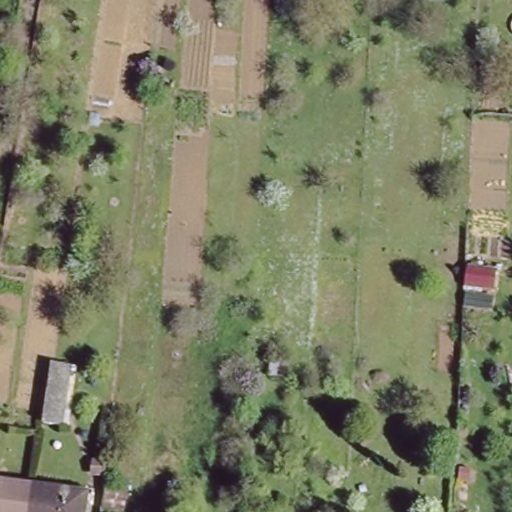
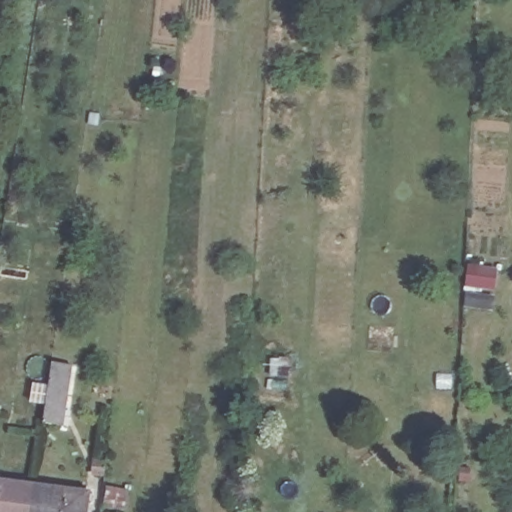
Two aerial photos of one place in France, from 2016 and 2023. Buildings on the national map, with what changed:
unchanged [(463,291),(467,264),(499,270),(497,295),(463,291)]
unchanged [(54,356),(80,359),(77,375),(72,374),(63,437),(42,433),(54,356)]
unchanged [(0,482),(33,487),(30,512),(0,512),(0,482)]
unchanged [(133,490),(130,512),(103,512),(109,485),(133,490)]
unchanged [(33,487),(88,496),(85,512),(30,512),(33,487)]

